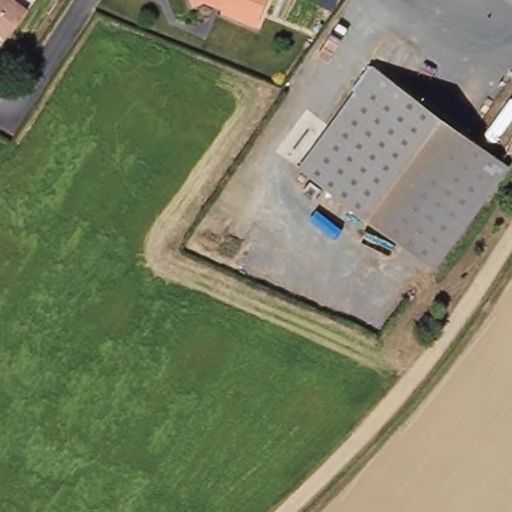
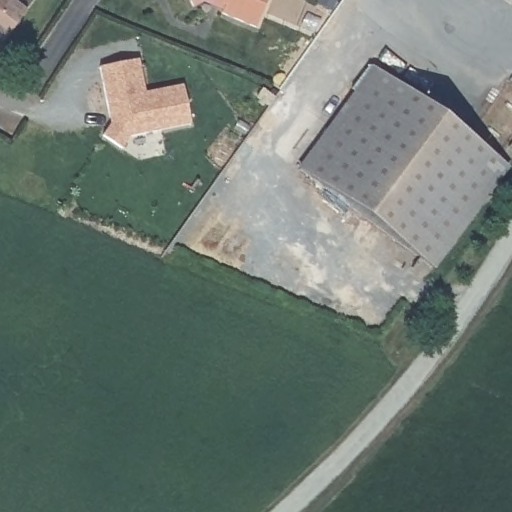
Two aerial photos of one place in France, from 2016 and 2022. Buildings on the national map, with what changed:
unchanged [(8,41),(0,35),(0,0),(16,0),(31,10),(8,41)]
unchanged [(192,0),(208,0),(194,5),(192,0)]
unchanged [(221,11),(226,1),(222,0),(268,0),(257,25),(221,11)]
new [(131,135),(122,148),(103,135),(111,123),(99,67),(140,58),(146,92),(184,84),(191,123),(131,135)]
unchanged [(438,267),(433,264),(306,173),(301,169),(376,66),(381,70),(507,162),(512,166),(512,167),(438,267)]

